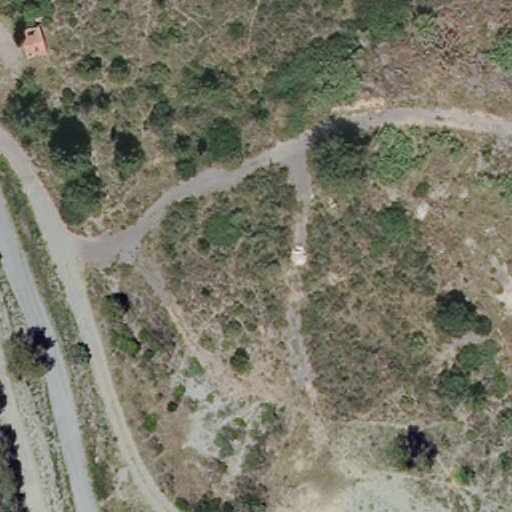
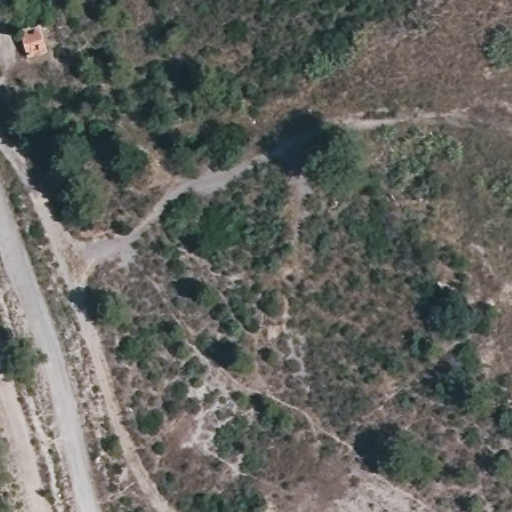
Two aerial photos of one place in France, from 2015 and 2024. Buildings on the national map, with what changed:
unchanged [(48,50),(29,57),(21,30),(39,22),(48,50)]

